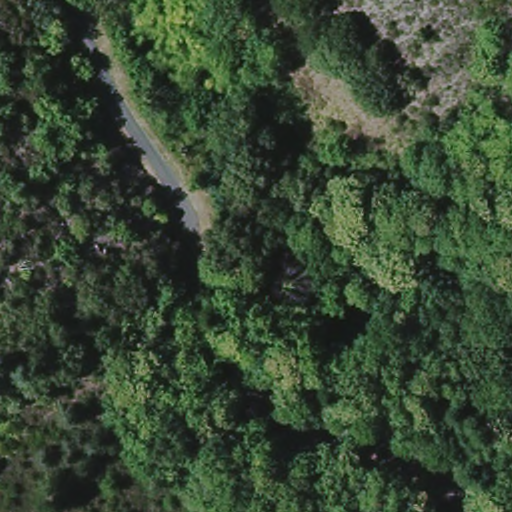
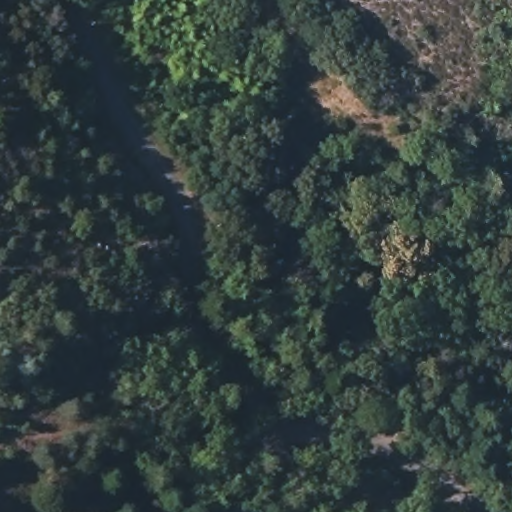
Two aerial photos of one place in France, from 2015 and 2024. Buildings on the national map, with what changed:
[]

